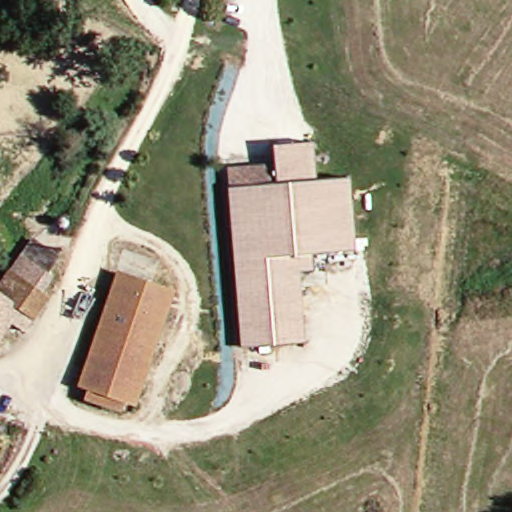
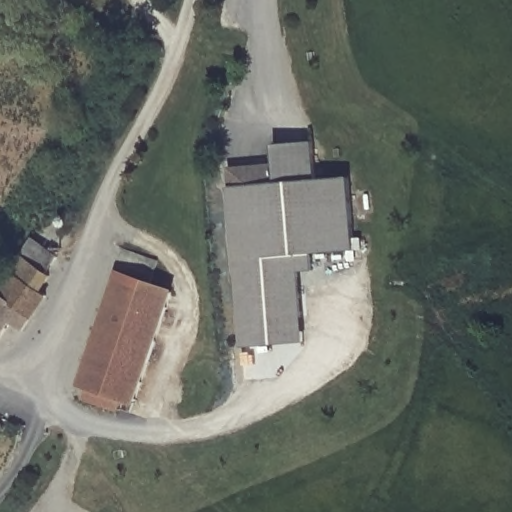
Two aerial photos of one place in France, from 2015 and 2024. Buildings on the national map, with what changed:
unchanged [(267,344),(240,346),(227,167),(275,163),(273,143),(313,140),(316,178),(347,175),(352,237),(362,236),(363,247),(310,251),(312,269),(297,270),(301,315),(302,341),(267,344)]
unchanged [(14,271),(36,240),(57,255),(49,298),(14,271)]
unchanged [(95,398),(99,387),(84,381),(125,268),(181,289),(139,401),(129,397),(125,409),(95,398)]
unchanged [(27,329),(16,322),(22,314),(0,300),(0,291),(1,290),(14,271),(49,298),(27,329)]
unchanged [(0,291),(0,290),(1,290),(0,291)]
unchanged [(16,322),(0,342),(0,300),(22,314),(16,322)]

